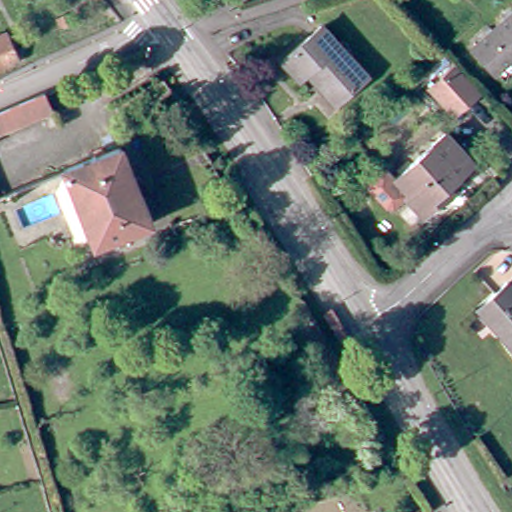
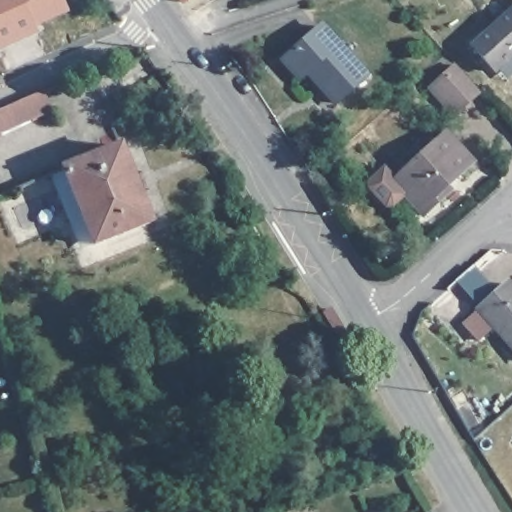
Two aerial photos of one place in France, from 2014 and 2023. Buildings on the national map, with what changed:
new [(35,24),(37,29),(0,45),(0,0),(65,0),(68,9),(35,24)]
unchanged [(476,35),(512,4),(512,49),(499,60),(476,35)]
unchanged [(337,105),(322,88),(326,84),(313,70),(301,80),(283,60),(321,26),(368,76),(337,105)]
unchanged [(436,73),(457,54),(481,80),(460,100),(436,73)]
unchanged [(41,100),(52,124),(0,146),(0,118),(41,100)]
unchanged [(440,204),(423,220),(391,185),(442,136),(471,167),(445,192),(448,196),(440,204)]
unchanged [(147,214),(91,239),(59,166),(113,140),(147,214)]
unchanged [(512,285),(512,342),(478,305),(506,279),(512,285)]

